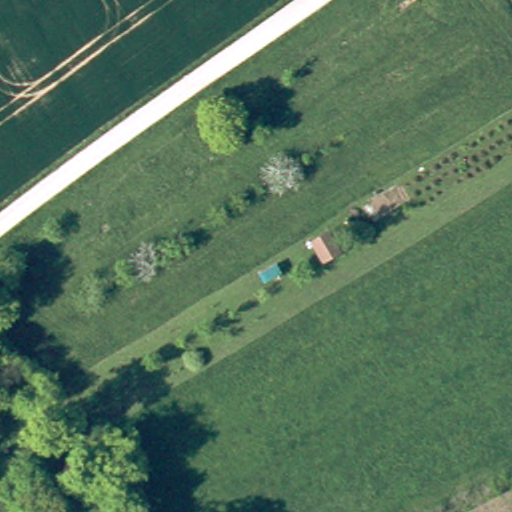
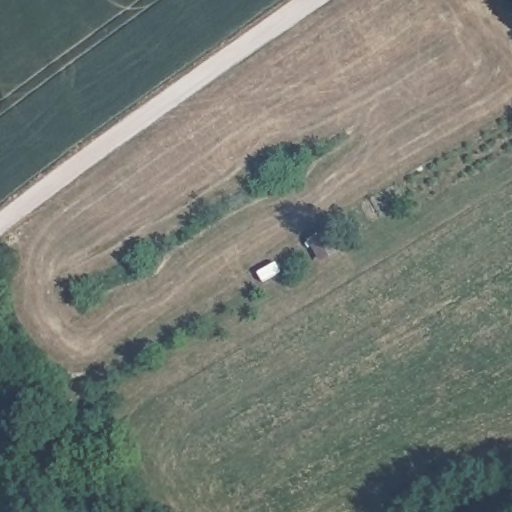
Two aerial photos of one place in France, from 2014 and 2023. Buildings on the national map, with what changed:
unchanged [(401,190),(422,179),(431,196),(409,208),(401,190)]

